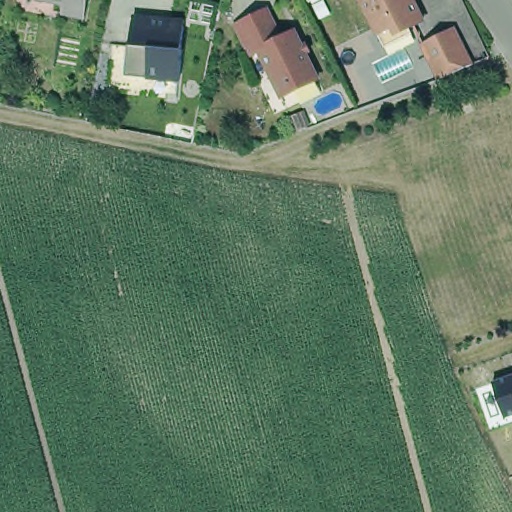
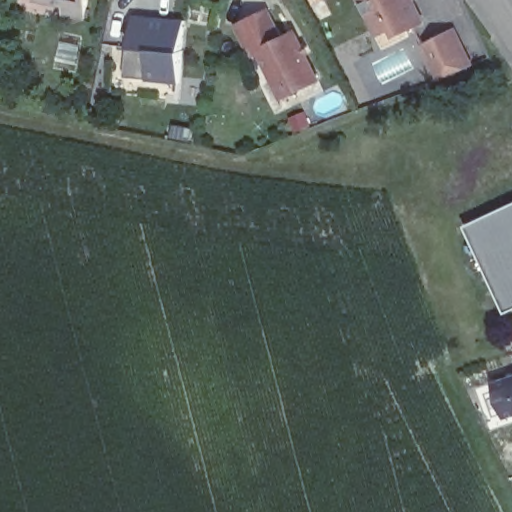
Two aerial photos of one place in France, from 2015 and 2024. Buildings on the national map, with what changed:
unchanged [(65,9),(67,2),(58,0),(88,0),(85,14),(65,9)]
unchanged [(395,31),(390,25),(374,32),(359,0),(410,0),(419,20),(395,31)]
unchanged [(280,35),(293,30),(315,77),(282,93),(259,47),(247,52),(232,24),(267,7),(280,35)]
unchanged [(180,48),(177,80),(154,79),(149,76),(122,75),(124,43),(128,44),(132,12),(157,14),(180,15),(180,24),(178,46),(180,48)]
unchanged [(454,28),(471,62),(439,75),(424,43),(454,28)]
new [(486,219),(512,207),(512,311),(507,313),(465,225),(485,216),(486,219)]
unchanged [(512,375),(512,412),(506,413),(496,380),(512,375)]

